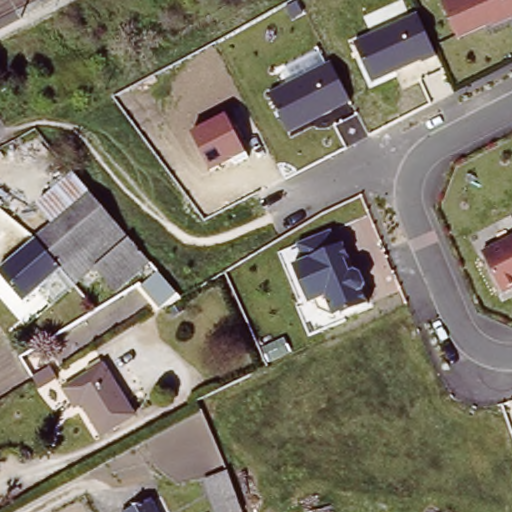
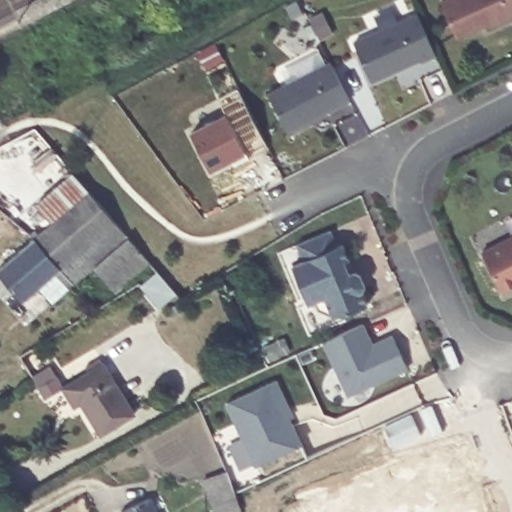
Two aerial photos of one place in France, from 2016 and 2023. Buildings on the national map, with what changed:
unchanged [(488,22),(459,36),(441,0),(512,0),(512,15),(489,25),(488,22)]
unchanged [(354,41),(416,14),(436,56),(422,62),(421,60),(372,83),(354,41)]
new [(215,42),(222,57),(204,66),(197,52),(215,42)]
unchanged [(269,94),(331,63),(350,101),(289,132),(269,94)]
unchanged [(249,158),(235,165),(232,160),(211,171),(191,132),(226,115),(249,158)]
unchanged [(116,292),(101,275),(90,284),(84,277),(54,303),(40,288),(24,302),(0,274),(0,269),(53,224),(37,205),(74,173),(102,205),(150,262),(116,292)]
unchanged [(337,246),(345,243),(351,258),(346,260),(350,272),(355,270),(362,273),(367,286),(364,293),(370,307),(336,320),(326,297),(309,303),(292,262),(301,258),(294,240),(330,227),(337,246)]
unchanged [(480,246),(512,231),(512,286),(502,291),(480,246)]
new [(348,395),(325,341),(365,322),(374,343),(393,335),(408,367),(348,395)]
unchanged [(105,364),(137,415),(104,435),(84,402),(78,406),(66,388),(105,364)]
new [(256,466),(228,400),(278,379),(303,442),(256,466)]
unchanged [(228,476),(241,512),(213,512),(204,485),(228,476)]
unchanged [(154,512),(133,512),(150,503),(154,512)]

